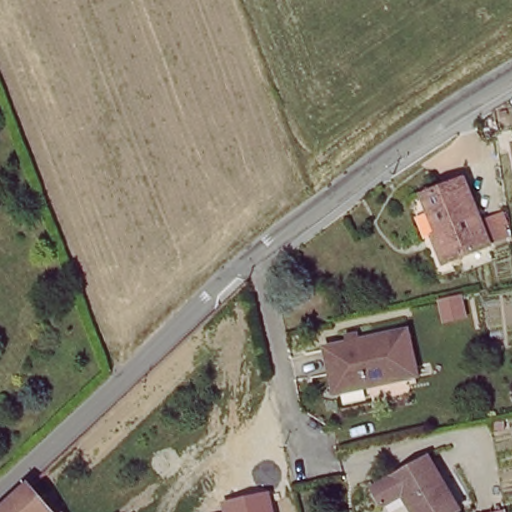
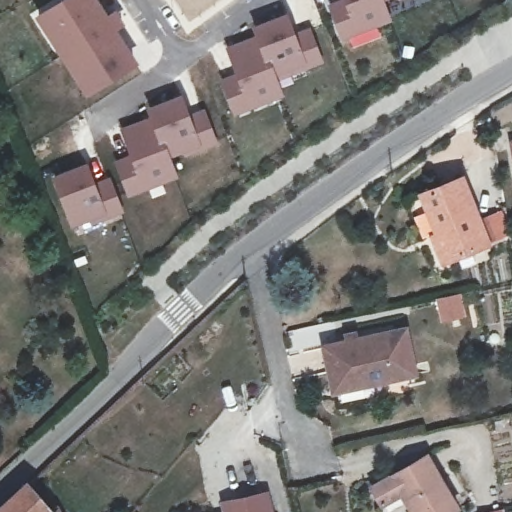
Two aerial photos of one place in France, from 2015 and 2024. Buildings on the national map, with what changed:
new [(60,0),(97,0),(106,13),(114,9),(125,24),(117,30),(137,64),(87,96),(35,16),(60,0)]
new [(337,0),(385,0),(392,20),(341,40),(328,4),(337,0)]
new [(234,72),(224,47),(253,34),(251,26),(286,12),(295,31),(309,26),(323,62),(291,75),(289,69),(276,75),(284,97),(234,116),(219,80),(234,72)]
new [(129,153),(120,129),(149,116),(145,108),(180,94),(189,114),(204,109),(218,145),(184,158),(182,152),(171,157),(178,178),(128,197),(113,161),(129,153)]
unchanged [(512,141),(512,161),(508,142),(512,141)]
new [(86,162),(94,181),(108,176),(124,212),(92,225),(89,219),(71,226),(52,177),(86,162)]
unchanged [(496,217),(501,235),(498,236),(483,241),(437,258),(431,237),(435,236),(419,188),(461,175),(477,223),(495,218),(496,217)]
unchanged [(329,381),(322,340),(382,331),(403,328),(410,368),(388,371),(329,381)]
unchanged [(421,458),(455,503),(443,512),(411,512),(389,480),(421,458)]
unchanged [(45,503),(50,498),(57,512),(0,512),(0,501),(23,480),(45,503)]
unchanged [(270,492),(275,512),(223,512),(220,501),(270,492)]
unchanged [(502,512),(490,512),(501,509),(502,512)]

